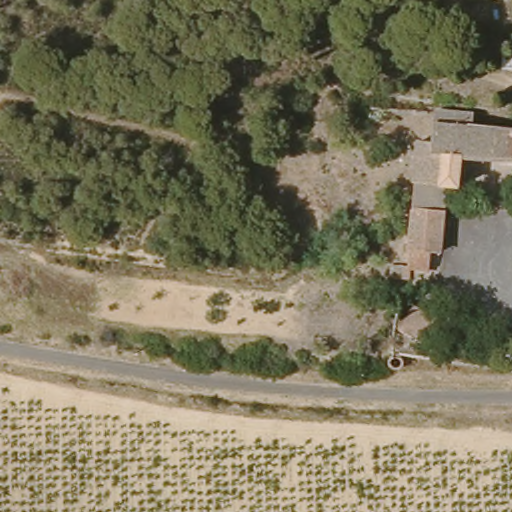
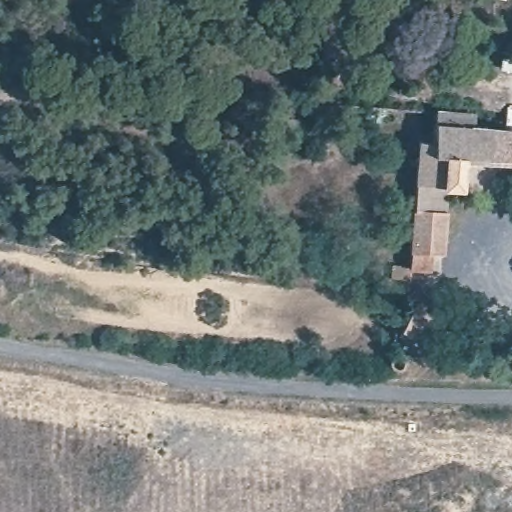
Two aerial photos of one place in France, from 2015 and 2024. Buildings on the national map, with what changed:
unchanged [(462,167),(458,196),(447,194),(445,220),(417,219),(423,147),(433,147),(437,116),(472,121),(472,132),(512,136),(512,169),(462,167)]
unchanged [(412,275),(417,219),(445,220),(442,258),(433,257),(432,274),(415,275),(415,287),(405,287),(392,286),(392,273),(412,275)]

